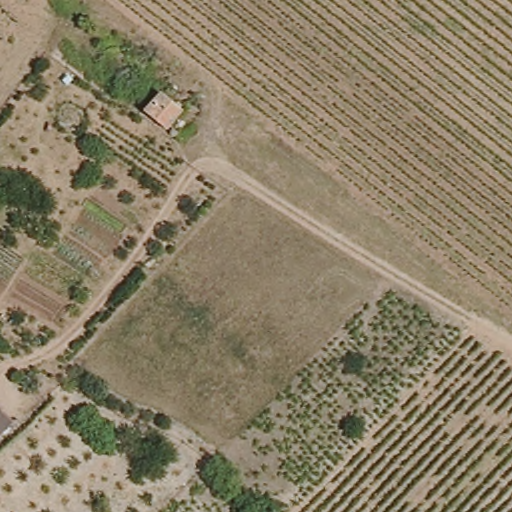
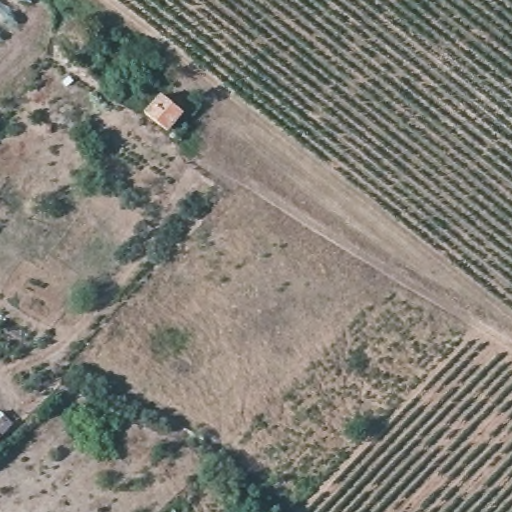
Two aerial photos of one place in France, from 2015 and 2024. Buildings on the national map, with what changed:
unchanged [(178,113),(162,132),(139,115),(157,95),(178,113)]

